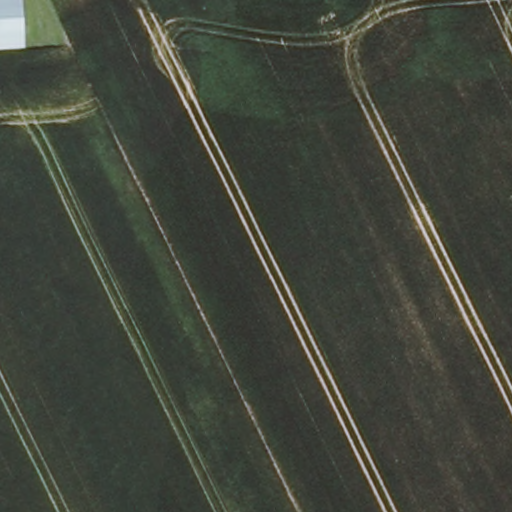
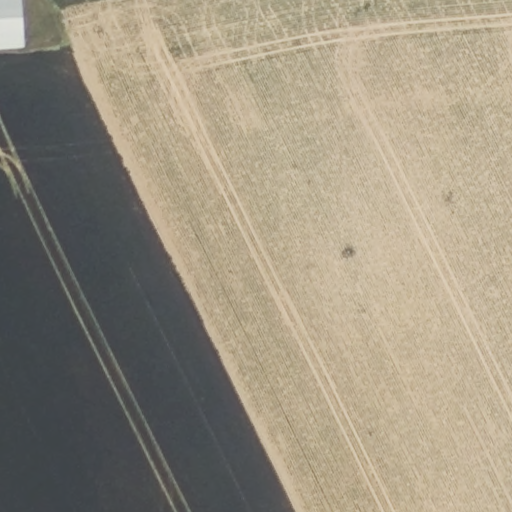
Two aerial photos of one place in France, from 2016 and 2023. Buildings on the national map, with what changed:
unchanged [(22,46),(0,48),(0,0),(20,0),(22,46)]

